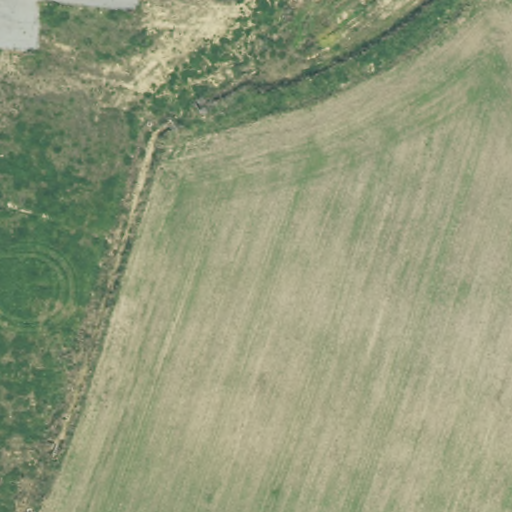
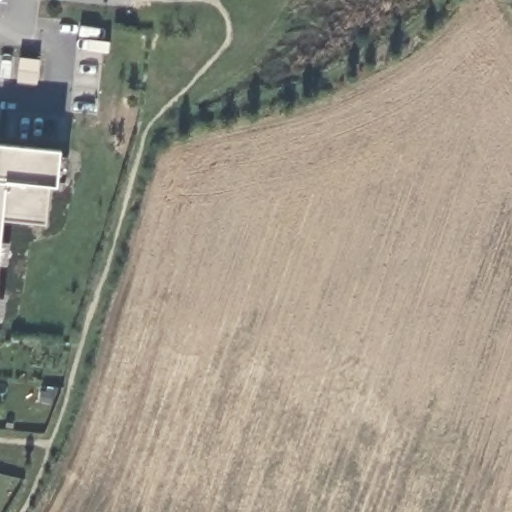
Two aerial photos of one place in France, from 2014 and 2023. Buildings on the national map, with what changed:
new [(19,58),(39,61),(35,85),(16,83),(19,58)]
new [(60,157),(67,158),(65,182),(57,180),(56,186),(50,185),(45,223),(4,220),(0,242),(8,243),(5,264),(0,263),(0,145),(60,151),(60,157)]
new [(1,321),(0,321),(0,300),(4,300),(1,321)]

